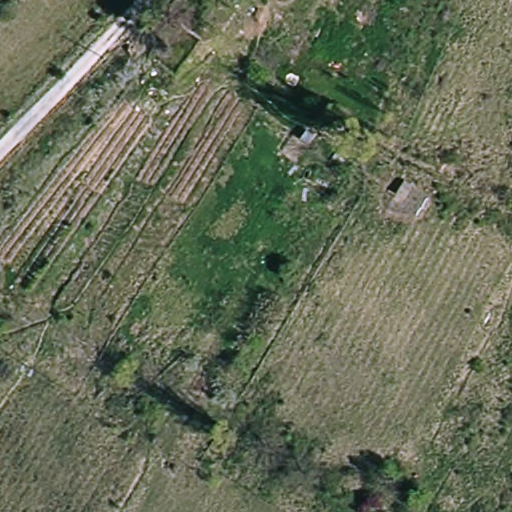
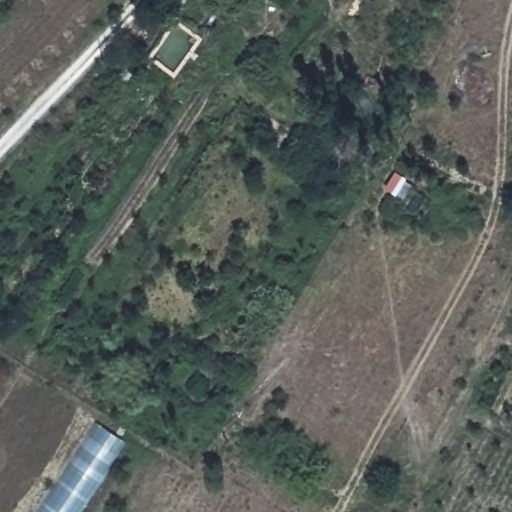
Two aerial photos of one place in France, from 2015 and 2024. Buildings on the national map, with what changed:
new [(81,512),(40,512),(99,424),(128,443),(81,512)]

